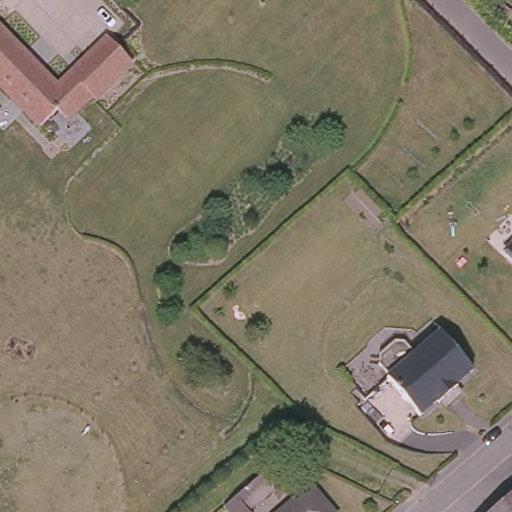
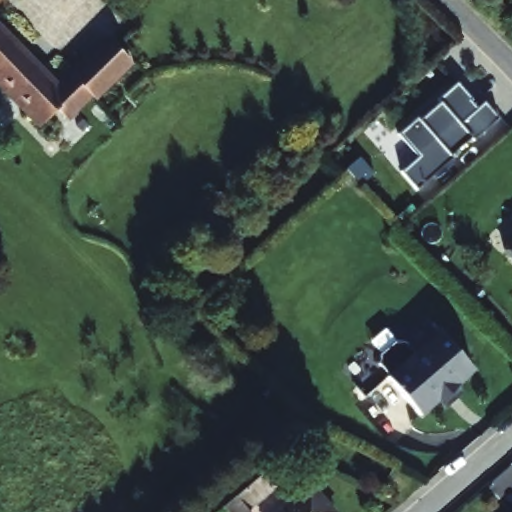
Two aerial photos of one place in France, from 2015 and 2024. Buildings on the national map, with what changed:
unchanged [(108,39),(131,61),(93,98),(90,94),(75,109),(67,101),(43,126),(0,83),(0,30),(56,88),(108,39)]
new [(418,158),(398,135),(417,118),(419,121),(439,103),(437,100),(457,83),(472,100),(470,102),(476,109),(484,102),(499,119),(473,141),(471,138),(451,156),(453,159),(417,191),(401,173),(418,158)]
unchanged [(497,243),(512,228),(512,258),(497,243)]
unchanged [(385,373),(385,363),(399,349),(408,349),(419,360),(444,335),(479,370),(463,387),(464,388),(448,406),(447,404),(430,420),(394,385),(397,384),(385,373)]
unchanged [(284,481),(249,509),(252,512),(231,512),(225,505),(272,467),(284,481)]
unchanged [(337,509),(334,512),(274,512),(311,479),(337,509)]
demolished [(512,493),(512,512),(490,512),(512,493)]

